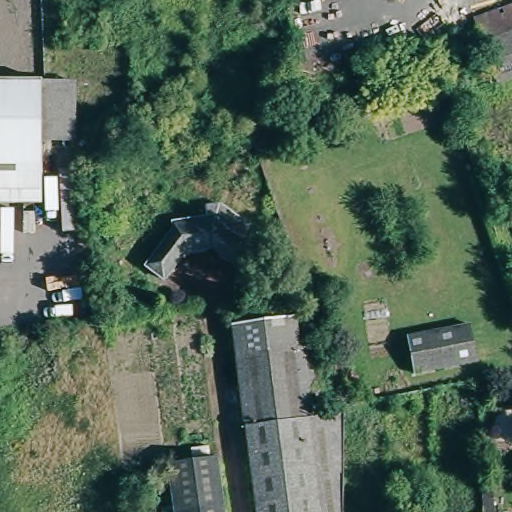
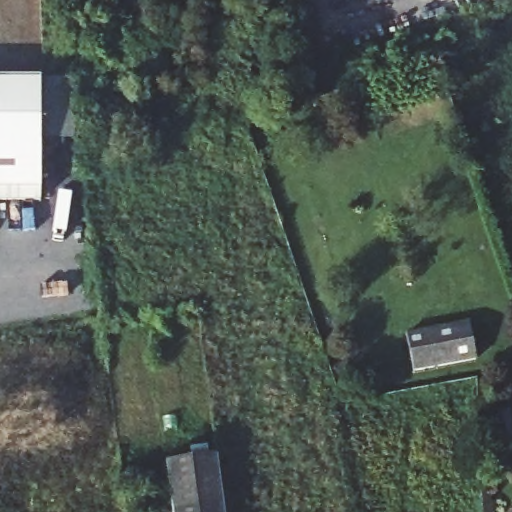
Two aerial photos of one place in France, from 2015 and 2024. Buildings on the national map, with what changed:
demolished [(481,44),(473,23),(512,8),(512,33),(481,44)]
demolished [(498,86),(481,44),(512,33),(512,81),(498,86)]
unchanged [(13,161),(0,161),(0,75),(43,74),(43,139),(13,161)]
unchanged [(43,74),(73,74),(74,139),(43,139),(43,74)]
unchanged [(0,187),(0,161),(13,161),(43,139),(43,187),(0,187)]
new [(0,202),(0,187),(43,187),(43,202),(0,202)]
demolished [(171,229),(170,218),(201,213),(200,201),(212,199),(253,222),(246,234),(255,239),(243,260),(213,243),(209,247),(193,249),(189,245),(158,272),(143,253),(171,229)]
demolished [(229,328),(294,319),(298,351),(233,361),(229,328)]
unchanged [(478,363),(413,370),(407,330),(471,322),(478,363)]
demolished [(233,361),(298,351),(306,349),(311,349),(320,413),(318,413),(319,421),(326,473),(312,476),(317,512),(255,512),(233,361)]
demolished [(312,476),(326,473),(319,421),(340,417),(338,512),(317,512),(312,476)]
unchanged [(215,458),(218,478),(223,512),(170,512),(163,464),(215,458)]

